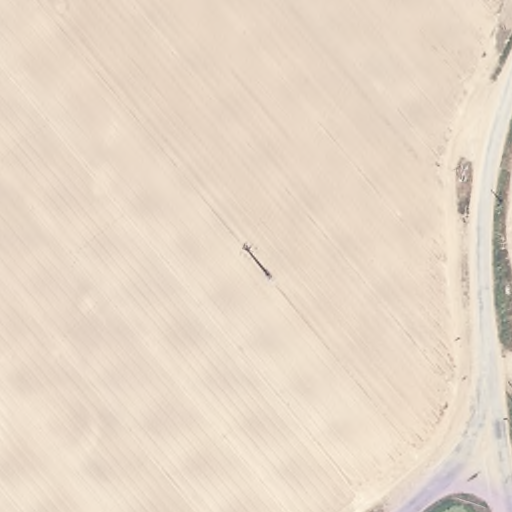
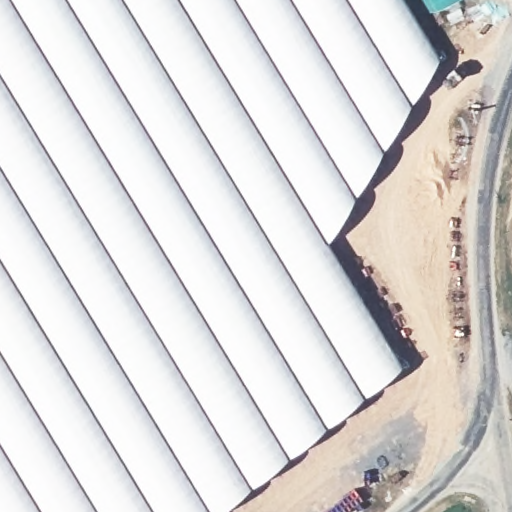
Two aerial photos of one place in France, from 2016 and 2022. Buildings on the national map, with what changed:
new [(403,364),(217,512),(0,512),(0,0),(404,0),(439,57),(328,241),(403,364)]
new [(429,0),(448,0),(434,8),(429,0)]

